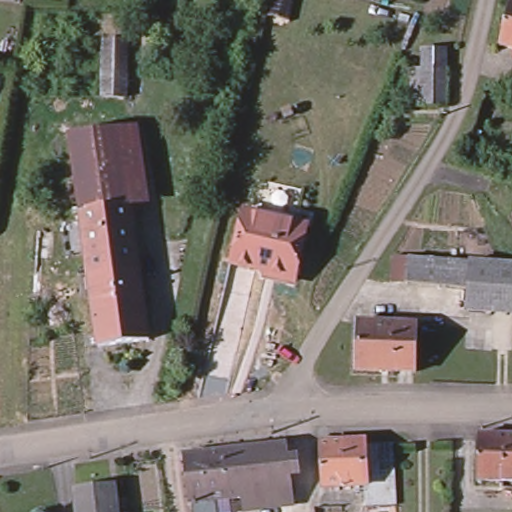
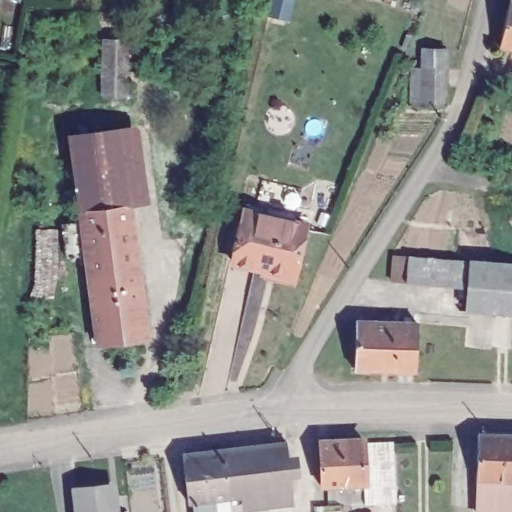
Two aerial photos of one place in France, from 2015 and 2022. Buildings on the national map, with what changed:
unchanged [(501,46),(511,0),(512,0),(512,49),(501,46)]
unchanged [(128,40),(126,97),(104,97),(105,39),(128,40)]
unchanged [(423,106),(424,67),(424,49),(447,49),(446,69),(446,107),(423,106)]
unchanged [(122,119),(131,195),(81,201),(70,126),(122,119)]
unchanged [(81,201),(131,195),(141,262),(142,275),(149,328),(131,332),(99,337),(92,282),(81,201)]
unchanged [(306,225),(294,277),(233,262),(246,211),(306,225)]
unchanged [(512,261),(512,310),(467,307),(468,284),(408,280),(394,278),(396,254),(409,255),(502,261),(512,261)]
unchanged [(406,319),(404,366),(366,365),(367,317),(406,319)]
unchanged [(512,431),(512,476),(478,475),(479,430),(512,431)]
unchanged [(364,436),(364,440),(366,480),(322,482),(320,437),(364,436)]
unchanged [(394,438),(397,498),(367,500),(366,480),(364,440),(394,438)]
unchanged [(288,448),(293,496),(229,503),(224,456),(288,448)]
unchanged [(193,507),(189,508),(183,461),(224,456),(229,503),(215,505),(216,512),(194,512),(193,507)]
new [(478,475),(512,476),(512,512),(477,512),(478,475)]
unchanged [(112,487),(115,512),(80,512),(78,491),(112,487)]

